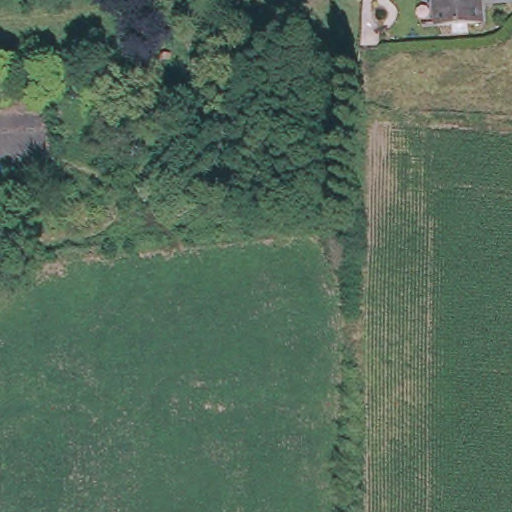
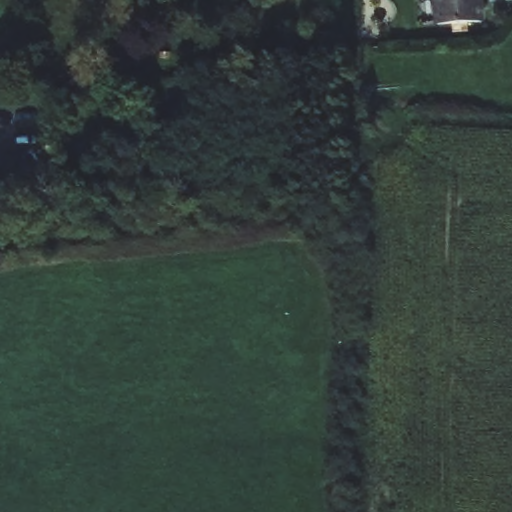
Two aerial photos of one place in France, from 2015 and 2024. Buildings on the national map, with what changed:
unchanged [(485,24),(440,26),(439,0),(483,0),(485,24)]

